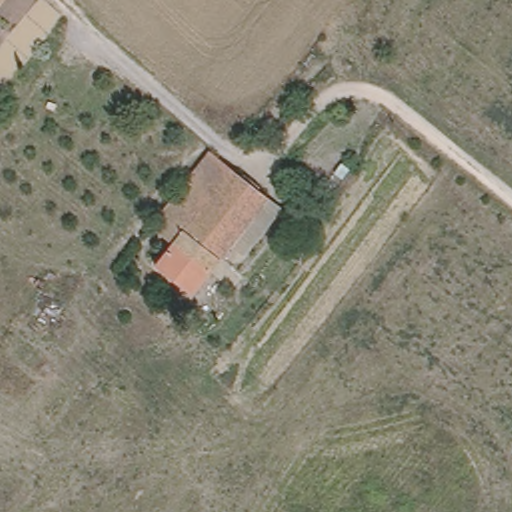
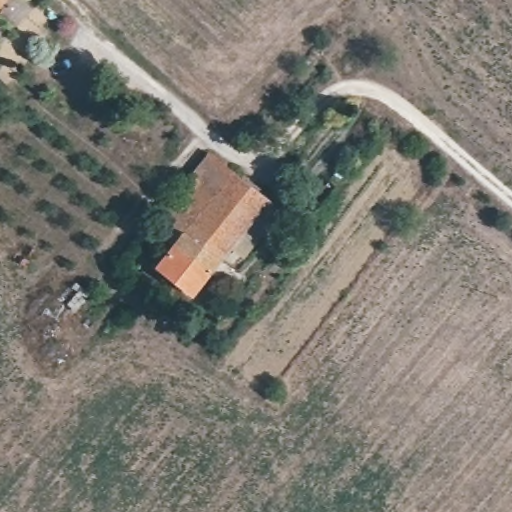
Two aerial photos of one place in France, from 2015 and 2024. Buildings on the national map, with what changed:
unchanged [(229,172),(231,170),(280,209),(244,258),(229,247),(191,295),(155,267),(173,245),(152,227),(208,156),(229,172)]

